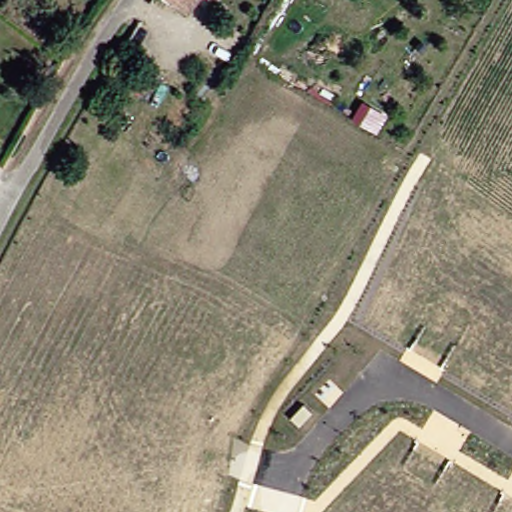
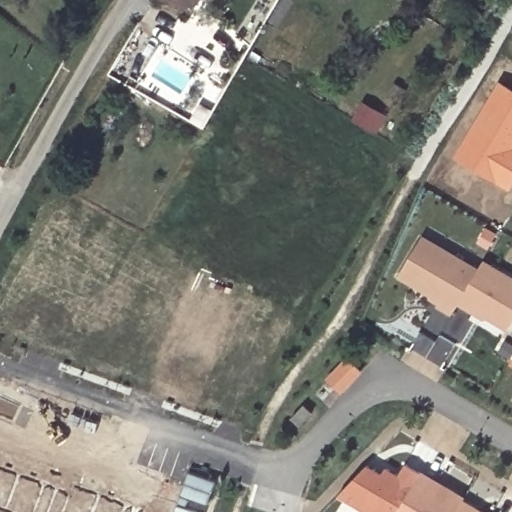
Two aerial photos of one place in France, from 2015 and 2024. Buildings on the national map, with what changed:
unchanged [(191,0),(183,10),(171,0),(191,0)]
new [(500,79),(512,86),(512,190),(455,157),(500,79)]
new [(377,133),(352,119),(363,100),(388,115),(377,133)]
new [(420,236),(476,269),(456,304),(451,312),(435,303),(438,299),(397,274),(420,236)]
new [(512,278),(512,318),(505,331),(456,304),(476,269),(481,260),(512,278)]
new [(345,359),(360,372),(340,392),(326,379),(345,359)]
new [(512,360),(512,363),(511,362),(512,360)]
new [(138,512),(0,512),(0,459),(140,508),(138,512)]
new [(396,512),(364,512),(337,496),(368,465),(381,473),(386,468),(398,474),(405,465),(419,472),(396,512)]
new [(419,472),(462,498),(454,512),(396,512),(419,472)]
new [(462,498),(485,512),(454,512),(462,498)]

